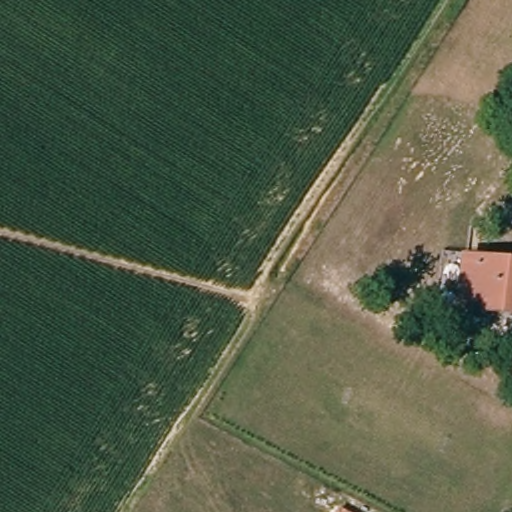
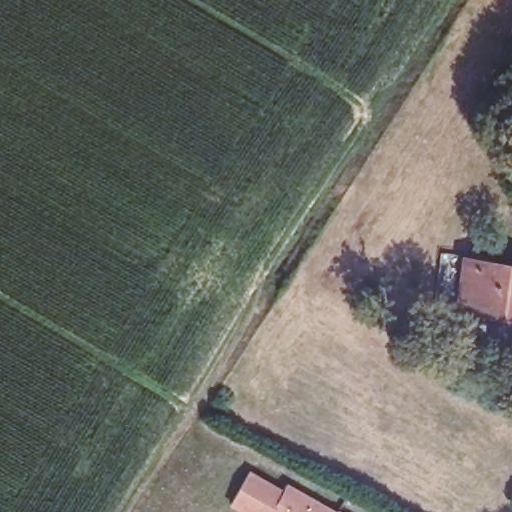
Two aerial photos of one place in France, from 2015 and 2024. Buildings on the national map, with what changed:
unchanged [(464,263),(492,265),(490,275),(474,273),(470,306),(512,309),(512,318),(460,313),(464,263)]
unchanged [(512,309),(470,306),(474,273),(490,275),(492,265),(512,268),(512,309)]
new [(229,506),(249,470),(283,490),(288,481),(338,511),(338,512),(241,512),(229,506)]
unchanged [(338,511),(340,512),(338,512),(338,511)]

